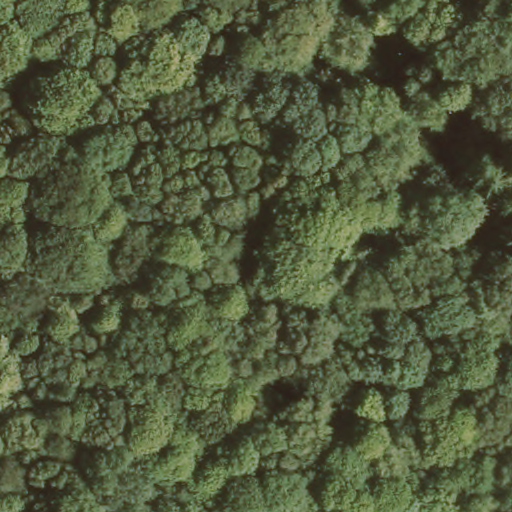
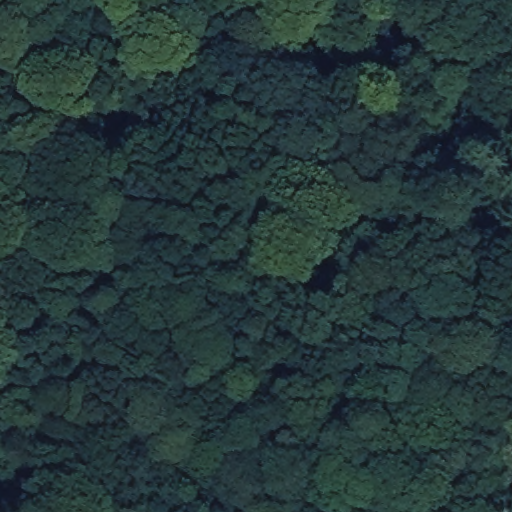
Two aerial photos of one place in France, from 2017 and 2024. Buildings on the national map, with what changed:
unchanged [(457,141),(452,132),(455,126),(462,122),(470,122),(475,129),(473,137),(466,142),(457,141)]

